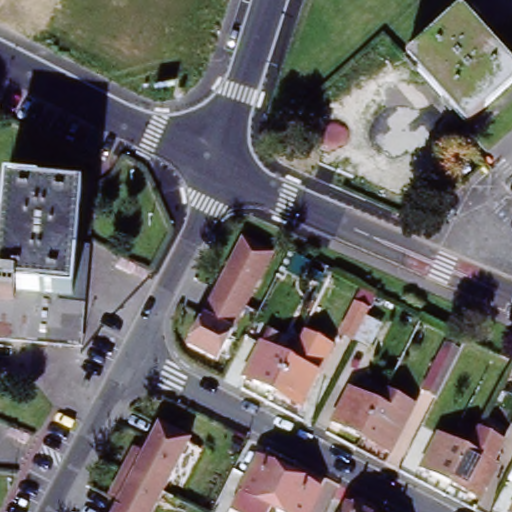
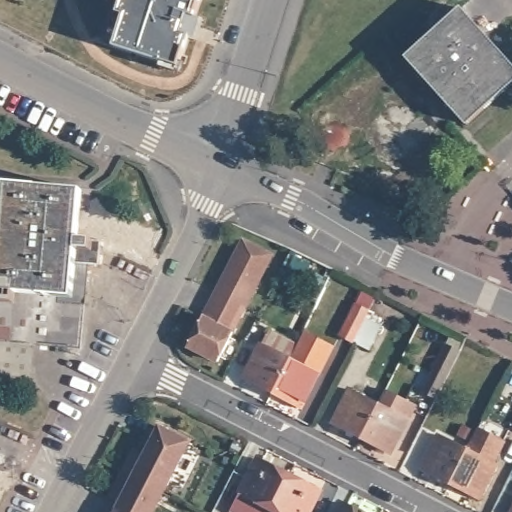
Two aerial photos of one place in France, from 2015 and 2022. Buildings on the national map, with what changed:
new [(179,68),(115,47),(125,16),(117,14),(121,0),(200,0),(179,68)]
unchanged [(457,7),(512,66),(512,78),(462,122),(402,55),(457,7)]
unchanged [(0,256),(6,184),(81,191),(73,295),(68,295),(0,289),(0,256)]
unchanged [(254,242),(274,252),(242,317),(212,303),(238,248),(244,237),(254,242)]
unchanged [(68,302),(79,303),(76,345),(0,337),(0,289),(68,295),(68,302)]
unchanged [(340,331),(355,302),(369,309),(357,331),(354,338),(340,331)]
unchanged [(242,317),(221,361),(205,353),(190,347),(197,332),(212,303),(242,317)]
unchanged [(290,359),(299,341),(302,333),(332,349),(302,408),(272,393),(290,359)]
unchanged [(437,399),(422,392),(440,353),(445,343),(461,351),(456,361),(447,379),(437,399)]
unchanged [(272,393),(244,378),(260,344),(290,359),(272,393)]
unchanged [(361,433),(333,419),(350,386),(377,399),(361,433)]
unchanged [(377,399),(384,387),(412,401),(390,448),(361,433),(377,399)]
unchanged [(465,450),(467,446),(468,443),(477,425),(502,437),(492,459),(495,461),(480,494),(450,479),(465,450)]
unchanged [(135,455),(145,460),(162,428),(190,443),(163,495),(124,475),(135,455)]
unchanged [(465,450),(450,479),(422,464),(439,431),(467,446),(465,450)]
unchanged [(244,490),(262,455),(294,472),(289,482),(275,506),(271,512),(244,512),(235,508),(244,490)]
unchanged [(294,472),(324,488),(311,512),(287,512),(275,506),(289,482),(294,472)]
unchanged [(154,512),(117,512),(124,500),(114,494),(124,475),(163,495),(154,512)]
unchanged [(371,512),(345,512),(350,501),(371,512)]

